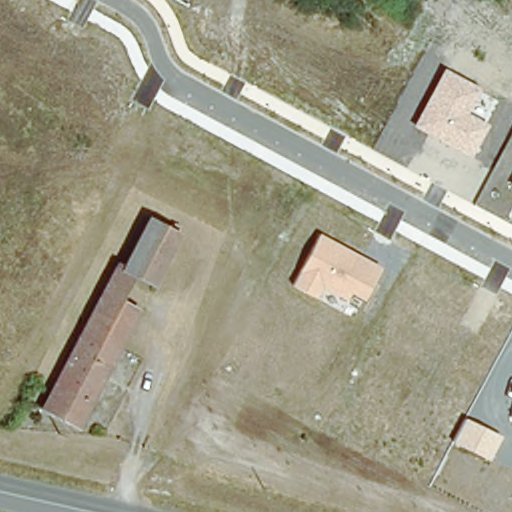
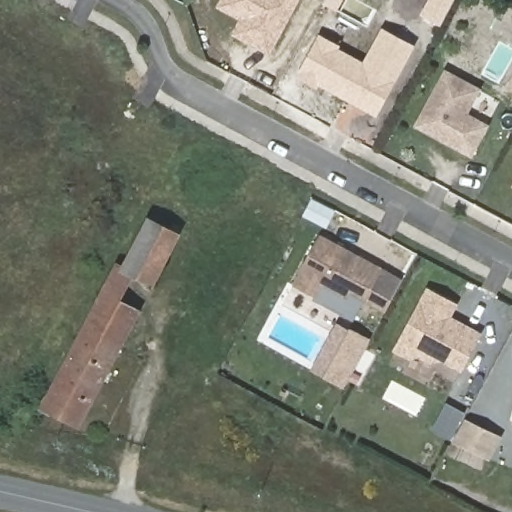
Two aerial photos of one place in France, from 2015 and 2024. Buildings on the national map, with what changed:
new [(231,35),(240,18),(217,6),(220,0),(299,0),(270,55),(231,35)]
new [(320,34),(341,45),(340,49),(364,62),(382,27),(416,45),(377,116),(319,86),(317,89),(296,77),(320,34)]
unchanged [(469,114),(490,125),(472,157),(416,126),(446,69),(482,89),(469,114)]
new [(512,81),(512,90),(508,88),(512,81)]
unchanged [(125,248),(141,219),(172,235),(156,268),(124,251),(125,248)]
unchanged [(353,293),(350,300),(325,289),(320,299),(294,285),(321,234),(383,268),(366,300),(353,293)]
unchanged [(156,268),(128,320),(96,301),(124,251),(156,268)]
new [(462,372),(441,361),(432,364),(421,358),(410,360),(393,351),(427,288),(459,305),(452,317),(482,333),(462,372)]
unchanged [(71,425),(70,425),(51,415),(37,407),(96,301),(128,320),(71,425)]
new [(345,389),(311,370),(338,322),(371,339),(345,389)]
unchanged [(491,460),(454,442),(467,418),(504,436),(491,460)]

